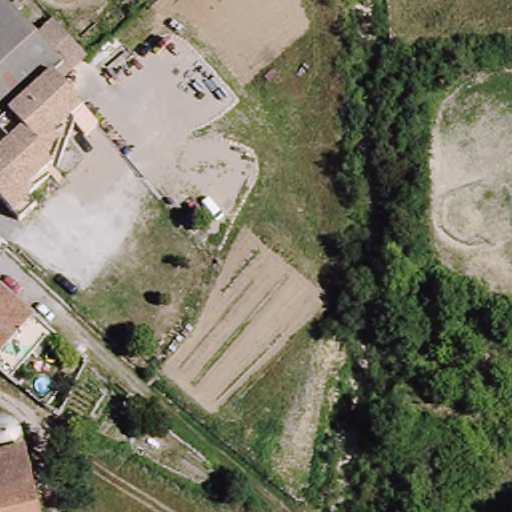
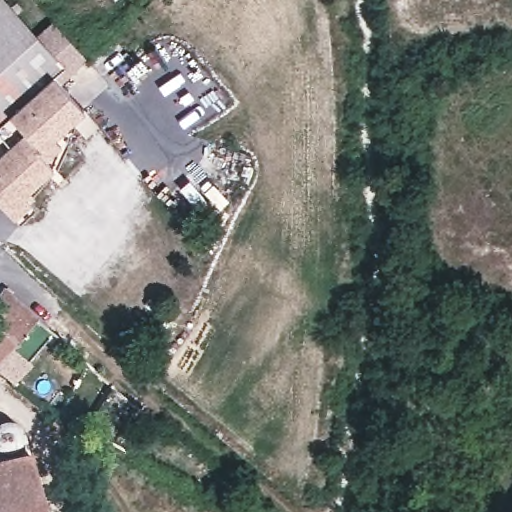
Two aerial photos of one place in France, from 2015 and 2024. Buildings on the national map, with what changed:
unchanged [(53,12),(86,45),(53,80),(13,121),(0,136),(0,0),(8,0),(37,28),(53,12)]
unchanged [(85,108),(69,126),(70,136),(50,155),(55,164),(30,190),(38,199),(18,219),(0,200),(0,151),(21,131),(13,121),(53,80),(85,108)]
unchanged [(10,383),(0,376),(0,290),(50,335),(10,383)]
unchanged [(13,427),(37,512),(0,512),(0,425),(1,424),(13,427)]

